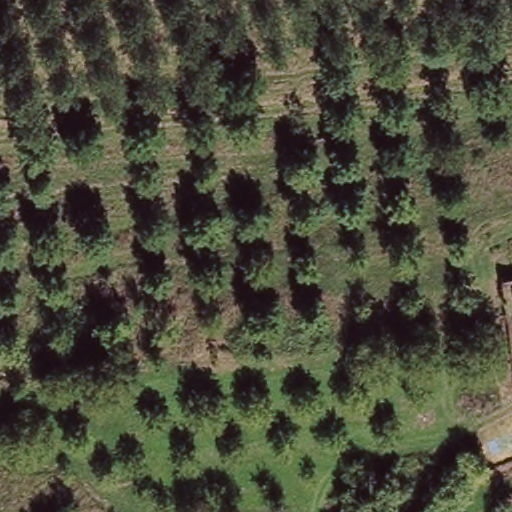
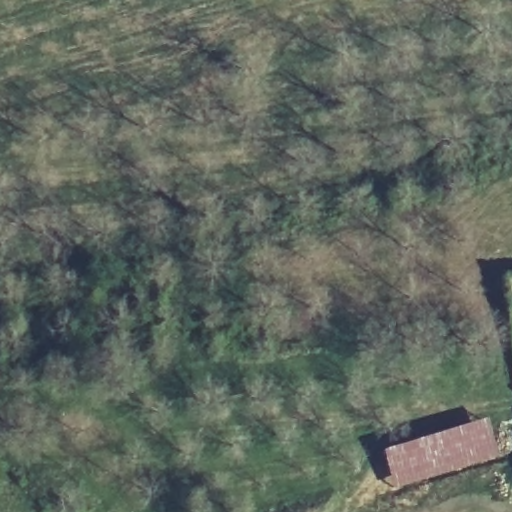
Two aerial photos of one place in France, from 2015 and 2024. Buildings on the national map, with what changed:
new [(485,418),(500,455),(484,462),(395,489),(382,450),(485,418)]

